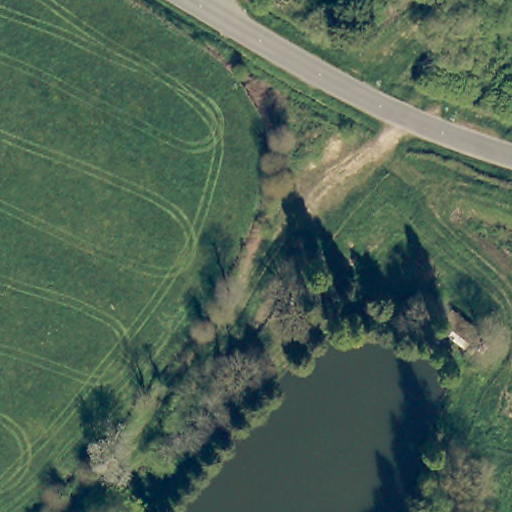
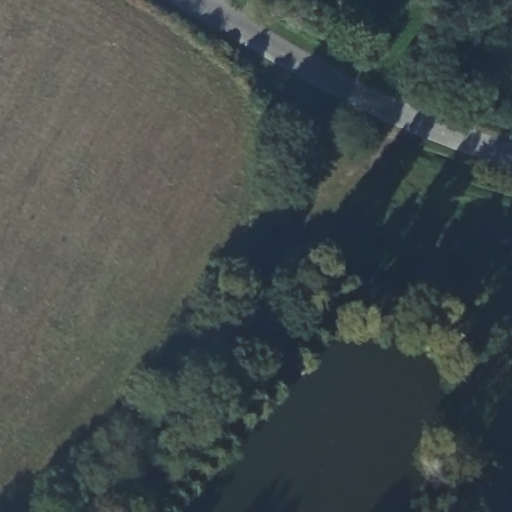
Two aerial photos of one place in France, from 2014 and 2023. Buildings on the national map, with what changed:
unchanged [(438,326),(452,309),(481,332),(474,344),(477,346),(473,353),(438,326)]

